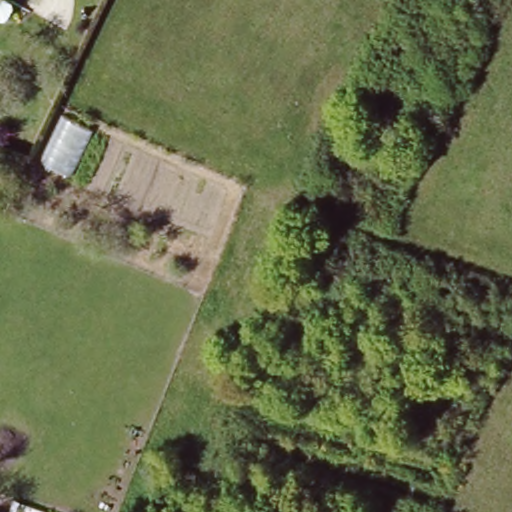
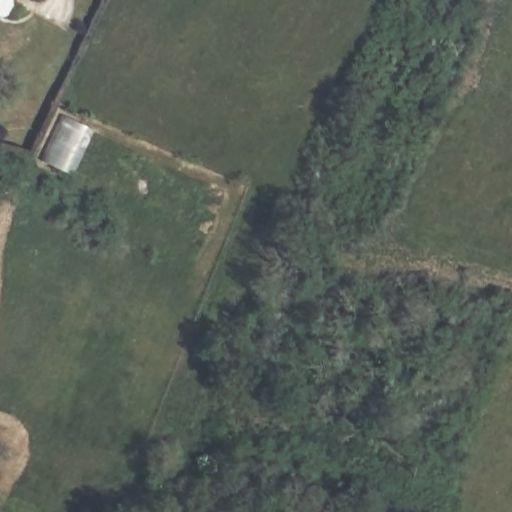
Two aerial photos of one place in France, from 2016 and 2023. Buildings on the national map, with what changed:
unchanged [(93,139),(76,177),(50,165),(65,131),(93,139)]
unchanged [(58,512),(7,512),(14,495),(58,512)]

